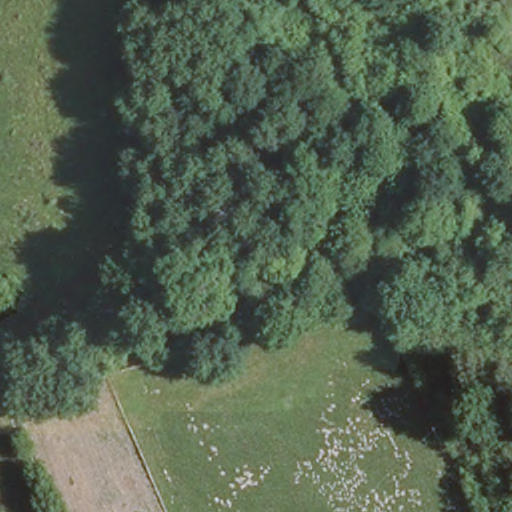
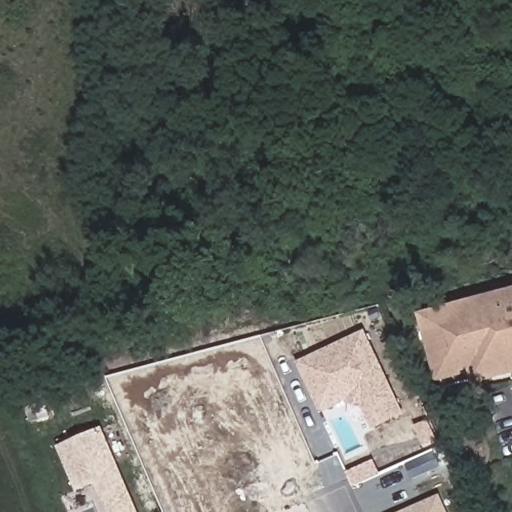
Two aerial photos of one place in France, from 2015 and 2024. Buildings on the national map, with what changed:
new [(473,385),(471,374),(438,382),(420,313),(512,289),(512,375),(473,385)]
new [(366,330),(406,415),(374,430),(358,397),(321,414),(297,363),(366,330)]
new [(135,512),(108,512),(96,482),(77,491),(60,449),(101,431),(135,512)]
new [(414,479),(407,462),(434,450),(441,467),(414,479)]
new [(401,512),(441,494),(448,512),(401,512)]

